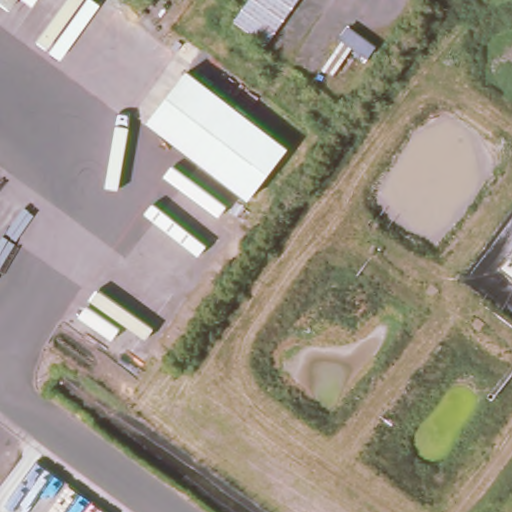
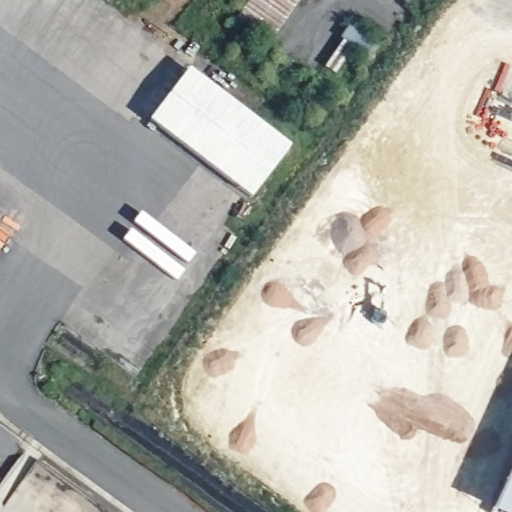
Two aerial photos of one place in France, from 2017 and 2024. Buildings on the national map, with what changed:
unchanged [(235,17),(247,0),(295,0),(266,40),(235,17)]
unchanged [(250,191),(152,116),(191,65),(289,141),(250,191)]
new [(512,469),(512,512),(492,512),(512,469)]

